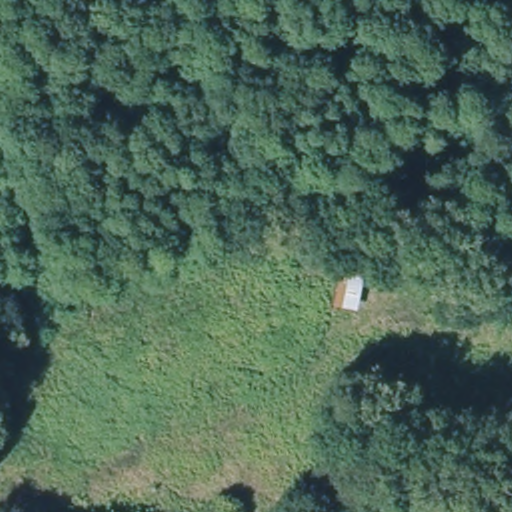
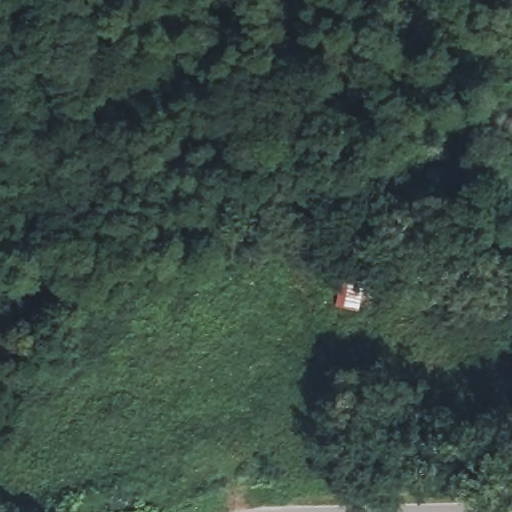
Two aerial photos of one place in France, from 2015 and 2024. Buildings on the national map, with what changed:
unchanged [(362,275),(355,311),(331,307),(339,269),(362,275)]
unchanged [(260,475),(274,475),(274,488),(260,489),(260,475)]

